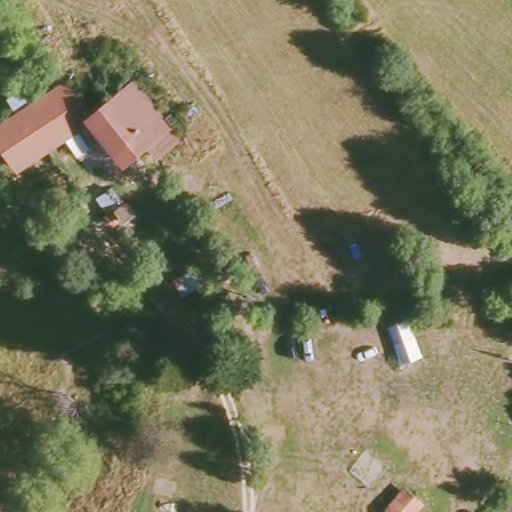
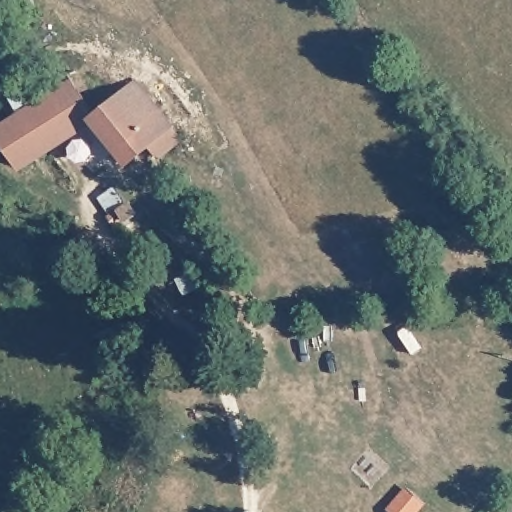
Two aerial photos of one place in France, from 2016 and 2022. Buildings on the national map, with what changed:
unchanged [(127,161),(96,116),(141,82),(172,125),(127,161)]
unchanged [(73,84),(96,116),(25,169),(0,132),(73,84)]
unchanged [(116,210),(121,220),(114,225),(98,197),(113,187),(124,206),(116,210)]
unchanged [(222,308),(196,315),(189,290),(215,283),(222,308)]

